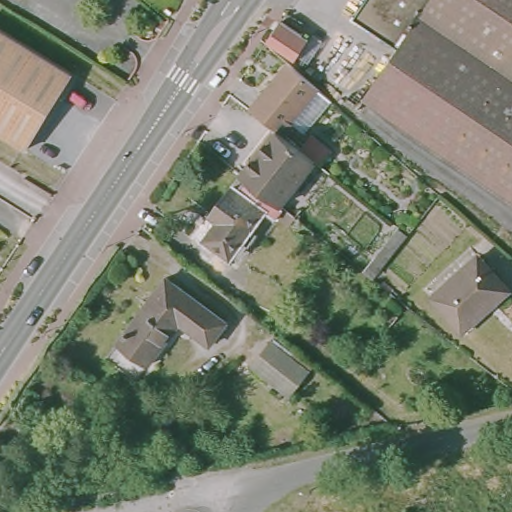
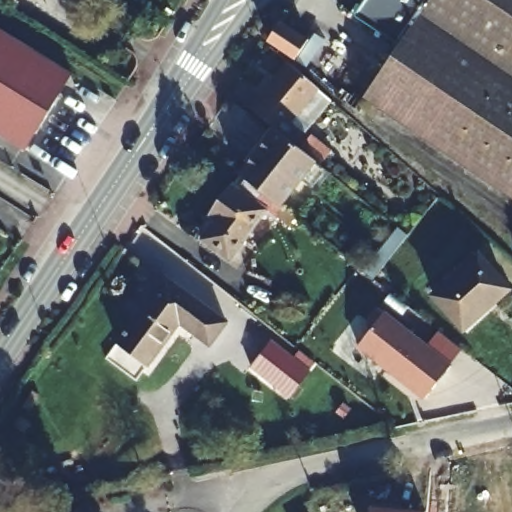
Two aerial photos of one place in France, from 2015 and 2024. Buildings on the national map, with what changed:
unchanged [(358,91),(393,39),(350,9),(357,0),(512,0),(512,195),(358,91)]
unchanged [(299,21),(311,31),(295,48),(284,38),(299,21)]
unchanged [(22,148),(0,134),(0,28),(70,72),(22,148)]
unchanged [(283,109),(287,113),(276,125),(275,123),(271,120),(241,97),(280,51),(307,74),(310,77),(283,109)]
unchanged [(275,194),(236,165),(271,120),(275,123),(276,125),(309,150),(275,194)]
unchanged [(212,225),(206,220),(228,189),(260,214),(225,262),(200,242),(212,225)]
unchanged [(380,287),(371,280),(400,236),(410,243),(380,287)]
unchanged [(474,254),(505,281),(487,300),(492,304),(467,329),(433,298),(474,254)]
unchanged [(166,274),(227,317),(210,341),(180,320),(149,364),(117,342),(166,274)]
new [(383,319),(427,353),(439,338),(461,353),(421,404),(359,352),(383,319)]
unchanged [(272,345),(303,366),(284,393),(252,371),(272,345)]
new [(425,512),(370,512),(370,505),(425,511),(425,512)]

